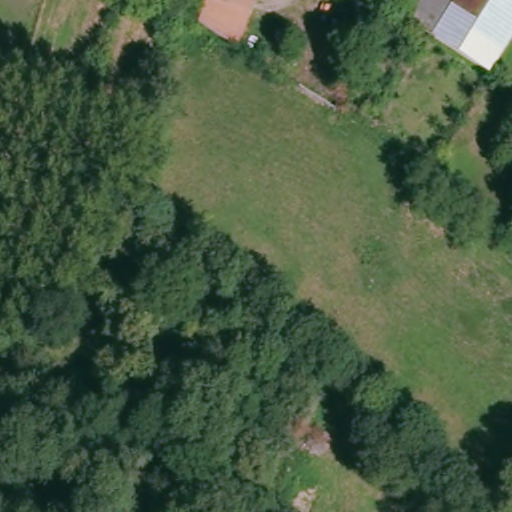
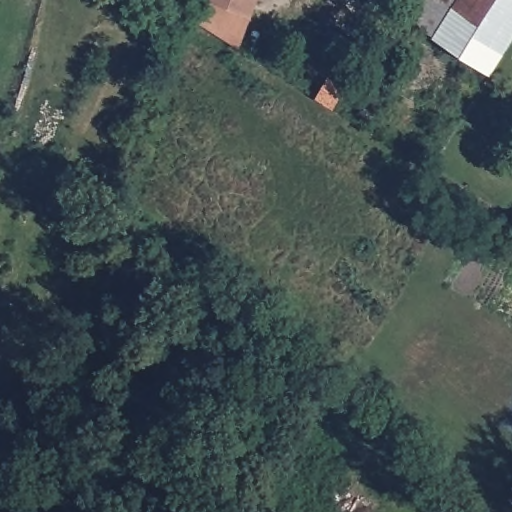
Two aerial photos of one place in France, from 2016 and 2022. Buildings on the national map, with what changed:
unchanged [(200,29),(211,0),(223,0),(254,11),(242,44),(200,29)]
unchanged [(223,0),(258,0),(254,11),(223,0)]
unchanged [(399,10),(405,0),(463,0),(440,37),(399,10)]
unchanged [(440,37),(463,0),(512,0),(512,52),(497,75),(440,37)]

